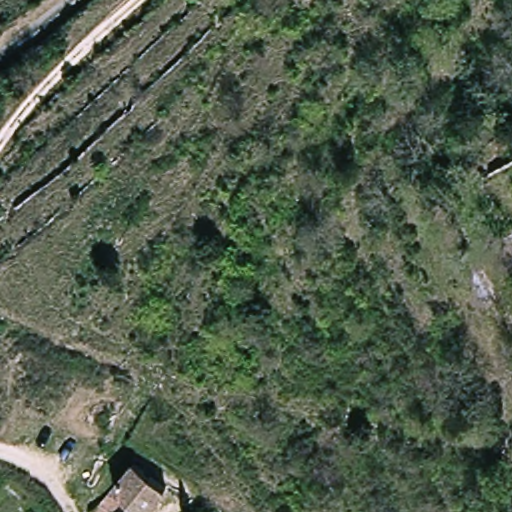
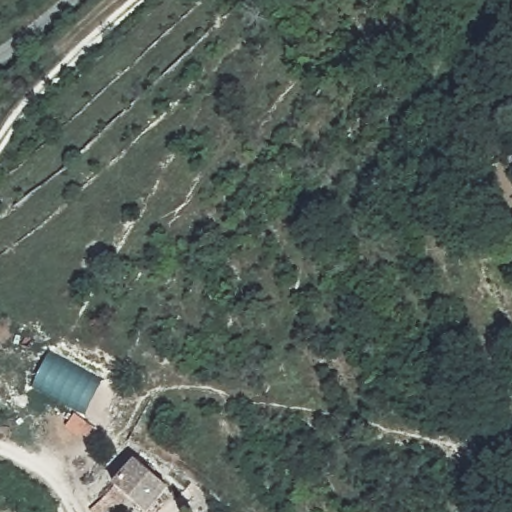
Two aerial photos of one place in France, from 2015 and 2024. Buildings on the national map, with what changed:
new [(96,379),(82,410),(28,386),(44,354),(96,379)]
unchanged [(165,491),(148,512),(135,512),(120,502),(111,512),(86,512),(107,489),(130,462),(165,491)]

